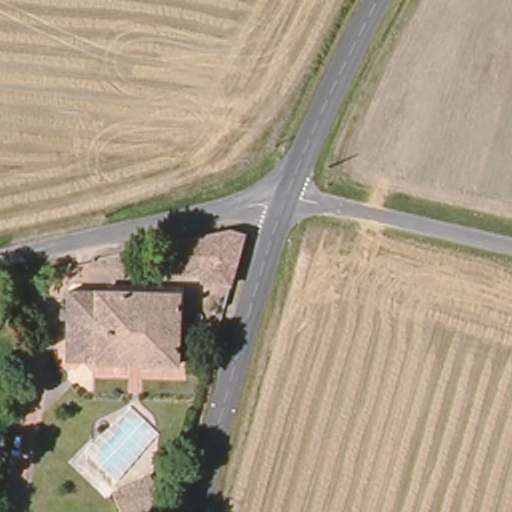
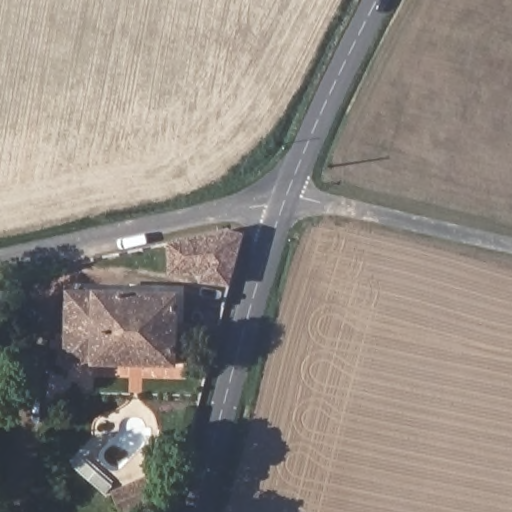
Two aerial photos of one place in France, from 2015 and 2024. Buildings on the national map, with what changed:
unchanged [(229,239),(247,241),(234,289),(204,285),(201,278),(174,278),(174,247),(229,239)]
unchanged [(71,368),(71,322),(62,322),(62,312),(71,312),(71,294),(179,295),(178,366),(71,368)]
unchanged [(127,508),(159,492),(169,510),(164,512),(129,512),(127,508)]

